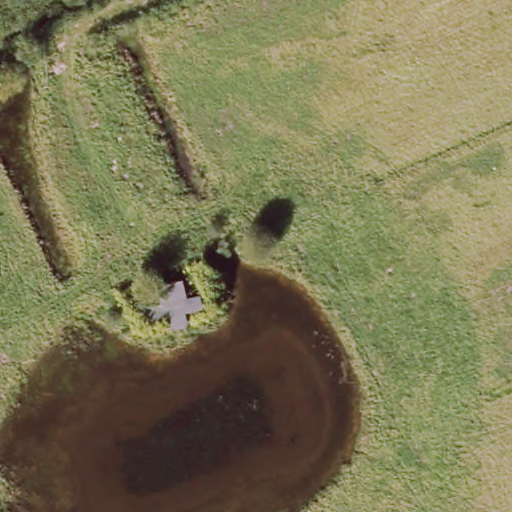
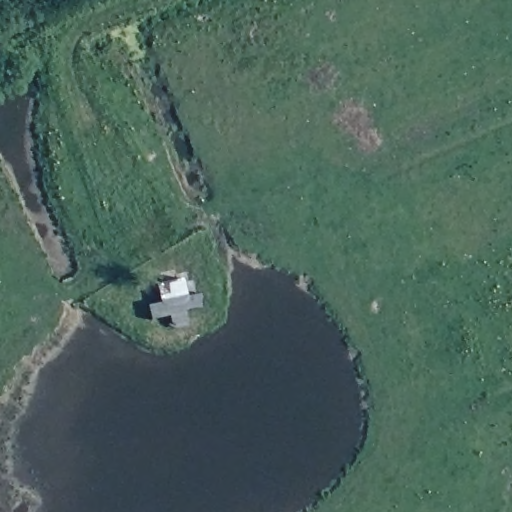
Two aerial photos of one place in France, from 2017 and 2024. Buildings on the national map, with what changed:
unchanged [(145,305),(158,302),(154,283),(182,276),(185,296),(198,293),(202,310),(185,314),(187,326),(169,330),(167,317),(148,321),(145,305)]

